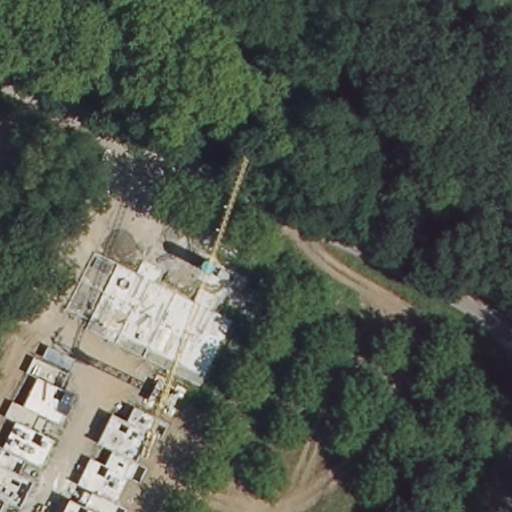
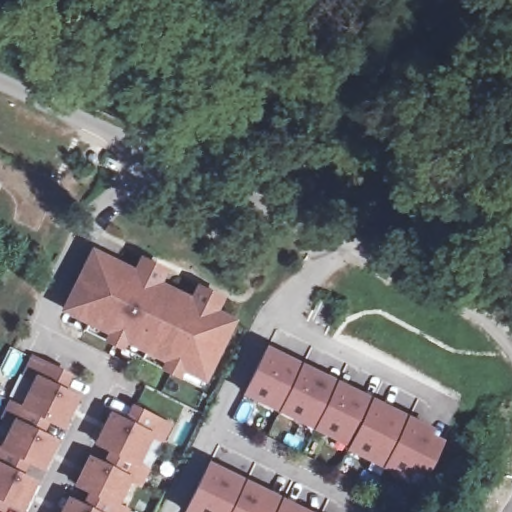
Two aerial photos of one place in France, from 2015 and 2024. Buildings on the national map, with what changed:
new [(88,247),(134,267),(139,256),(168,268),(163,282),(190,296),(197,283),(225,297),(218,311),(237,320),(205,385),(201,382),(200,387),(83,331),(85,325),(60,312),(88,247)]
new [(265,346),(435,428),(431,435),(443,440),(425,477),(413,472),(408,481),(345,451),(347,446),(242,396),(265,346)]
unchanged [(16,423),(5,417),(12,402),(25,407),(38,378),(26,374),(34,357),(70,375),(63,390),(77,396),(63,426),(50,419),(41,434),(55,442),(40,469),(26,462),(20,475),(33,482),(20,509),(5,501),(0,510),(0,447),(4,448),(16,423)]
unchanged [(71,501),(85,507),(93,492),(78,485),(91,459),(106,466),(113,452),(98,443),(113,414),(127,422),(134,409),(168,425),(161,441),(148,434),(134,462),(146,470),(139,484),(126,478),(115,503),(125,510),(124,512),(65,512),(71,501)]
new [(314,512),(183,512),(207,461),(314,512)]

